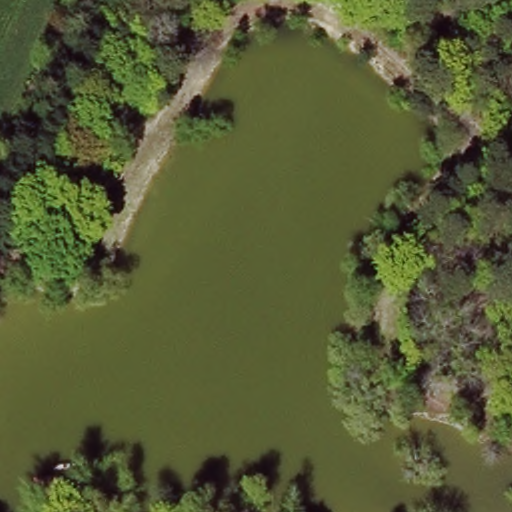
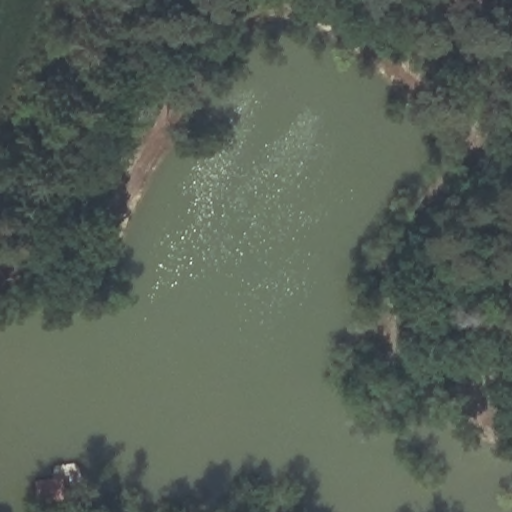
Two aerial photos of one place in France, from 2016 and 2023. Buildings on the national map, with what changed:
unchanged [(60,471),(73,471),(76,491),(58,486),(60,471)]

